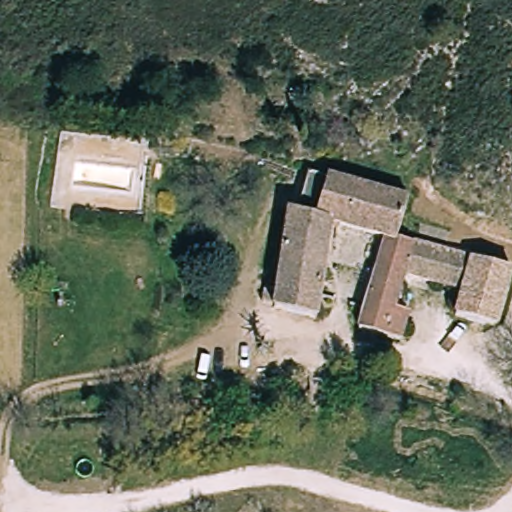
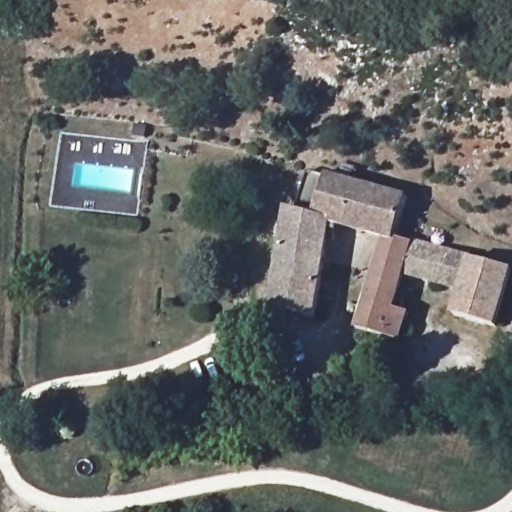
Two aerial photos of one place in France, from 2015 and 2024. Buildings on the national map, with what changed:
unchanged [(264,293),(273,295),(284,211),(312,216),(323,175),(403,197),(393,239),(509,272),(493,327),(452,316),(458,292),(405,277),(394,310),(406,315),(397,344),(356,331),(366,291),(360,288),(364,277),(369,278),(381,239),(329,225),(314,318),(273,311),(273,308),(261,306),(264,293)]

